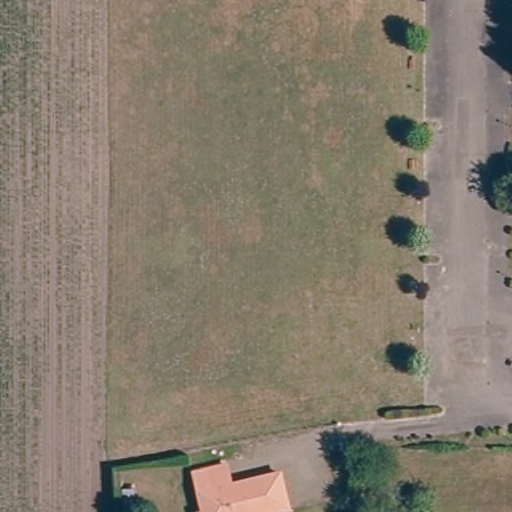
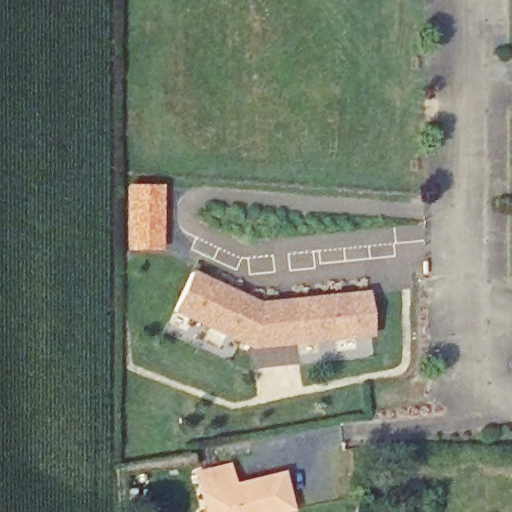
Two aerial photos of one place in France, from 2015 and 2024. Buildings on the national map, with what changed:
new [(124,184),(162,184),(160,250),(123,250),(124,184)]
new [(190,271),(259,302),(367,291),(370,337),(250,350),(172,312),(190,271)]
unchanged [(213,508),(203,470),(235,462),(240,483),(255,480),(254,476),(283,468),(295,512),(203,512),(213,508)]

